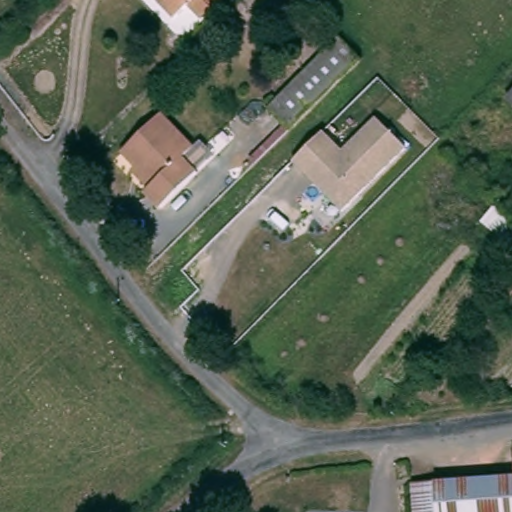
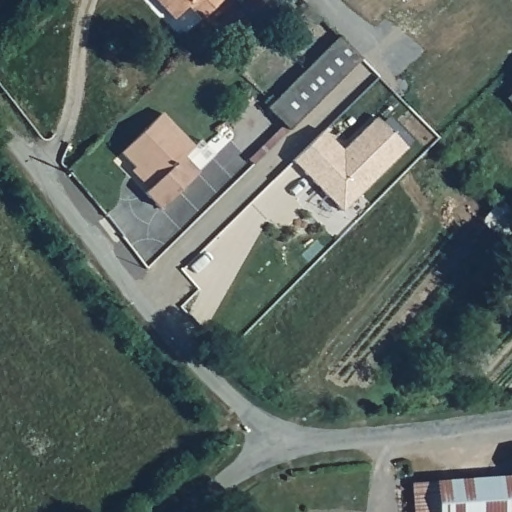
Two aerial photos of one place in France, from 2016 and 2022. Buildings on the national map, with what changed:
unchanged [(224,4),(202,24),(188,10),(174,24),(151,0),(220,0),(224,4)]
unchanged [(290,130),(268,108),(339,37),(361,59),(290,130)]
unchanged [(512,94),(512,104),(507,99),(512,94)]
unchanged [(197,172),(160,208),(145,192),(152,185),(121,152),(161,112),(194,146),(183,157),(197,172)]
unchanged [(344,209),(292,162),(324,129),(345,147),(376,118),(406,147),(344,209)]
unchanged [(512,476),(512,512),(415,512),(412,483),(512,476)]

